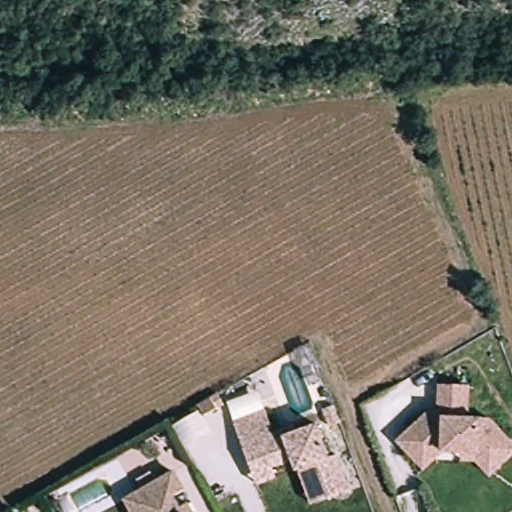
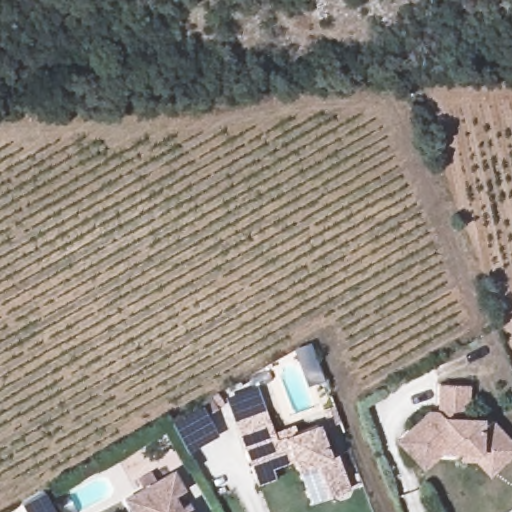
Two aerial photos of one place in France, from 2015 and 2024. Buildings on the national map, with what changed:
unchanged [(460,461),(461,453),(444,452),(423,472),(395,442),(406,432),(427,412),(437,412),(438,385),(469,386),(468,419),(490,419),(512,444),(512,455),(496,471),(489,477),(476,462),(460,461)]
unchanged [(216,409),(204,416),(197,404),(210,397),(216,409)]
unchanged [(297,469),(294,459),(272,468),(275,477),(255,484),(252,475),(233,422),(265,410),(274,434),(293,426),(296,433),(317,425),(329,457),(336,454),(348,489),(321,500),(311,504),(297,469)]
unchanged [(124,499),(130,495),(173,471),(184,491),(173,497),(180,508),(187,504),(191,510),(192,512),(131,512),(124,499)]

